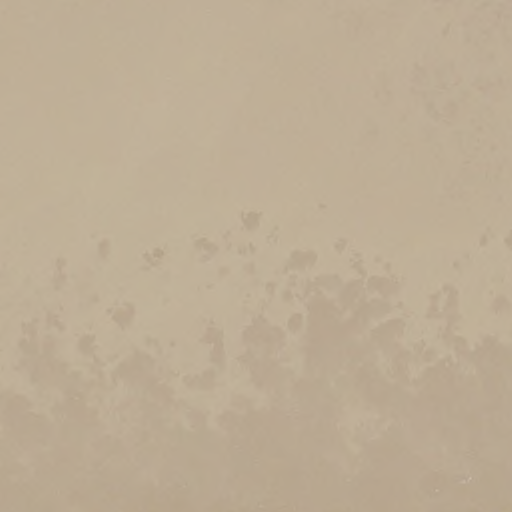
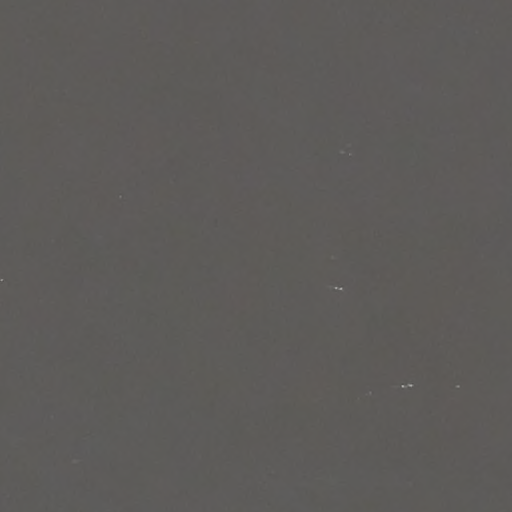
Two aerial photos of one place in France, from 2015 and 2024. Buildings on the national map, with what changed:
[]

